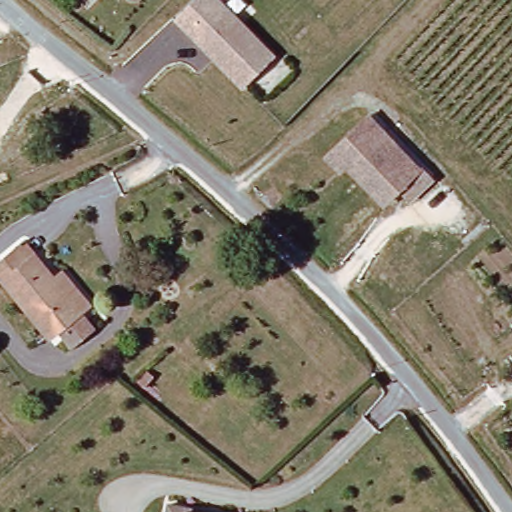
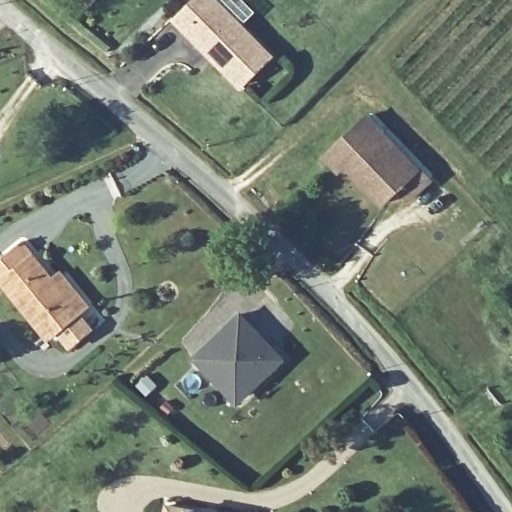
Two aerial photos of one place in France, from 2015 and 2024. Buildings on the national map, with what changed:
unchanged [(200,0),(216,0),(272,56),(241,87),(177,24),(200,0)]
unchanged [(410,197),(399,187),(385,204),(346,166),(340,174),(325,160),(366,114),(382,129),(418,164),(430,175),(410,197)]
unchanged [(14,250),(21,244),(34,257),(54,279),(61,272),(92,305),(84,312),(52,341),(0,285),(0,263),(14,250)]
new [(242,313),(286,358),(239,404),(195,359),(242,313)]
unchanged [(222,512),(169,512),(171,504),(222,512)]

